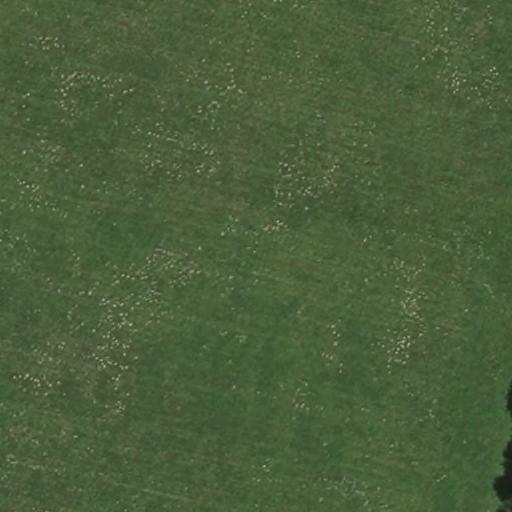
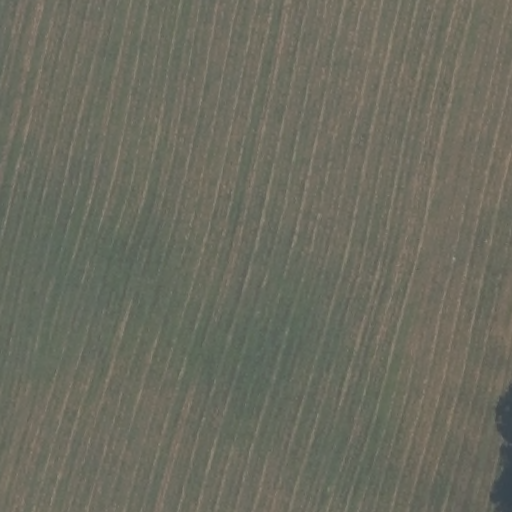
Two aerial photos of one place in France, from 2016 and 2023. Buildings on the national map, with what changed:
[]

